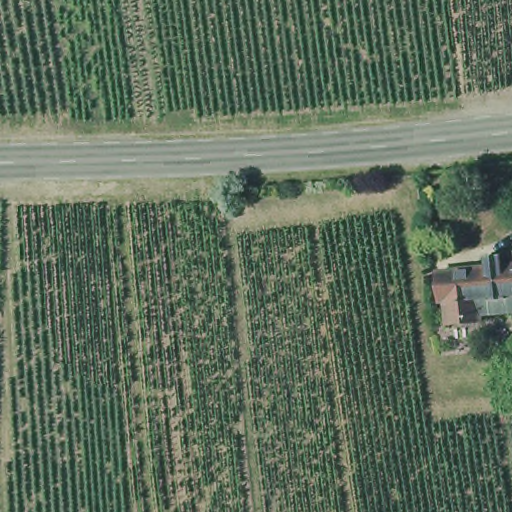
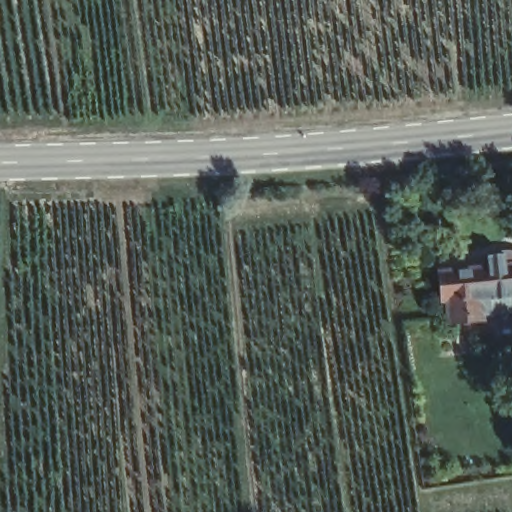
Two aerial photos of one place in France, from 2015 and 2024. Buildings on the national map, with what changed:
unchanged [(508,254),(512,254),(512,300),(500,301),(496,245),(507,244),(508,254)]
unchanged [(500,301),(487,303),(488,310),(453,313),(451,290),(445,290),(442,261),(491,256),(490,245),(496,245),(500,301)]

